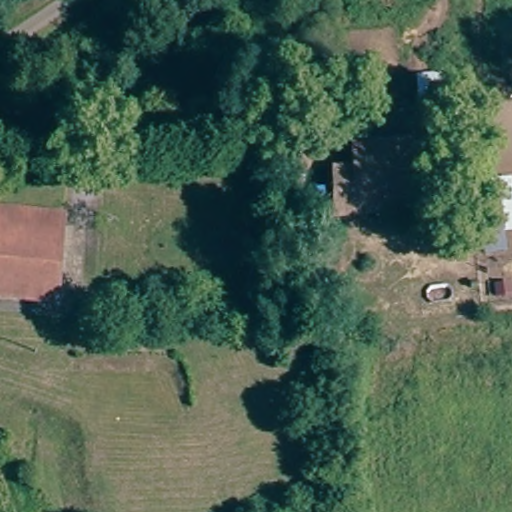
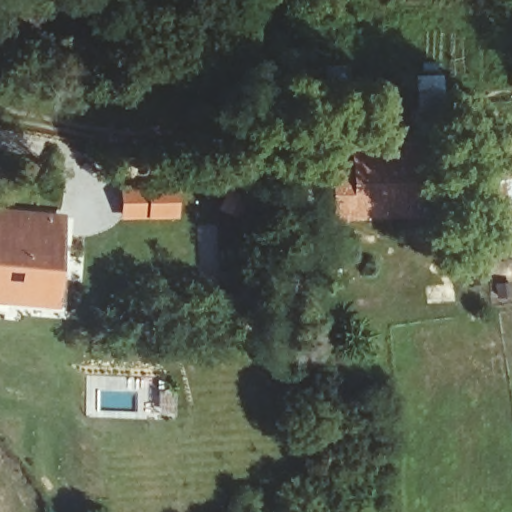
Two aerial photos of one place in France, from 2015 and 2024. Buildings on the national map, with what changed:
unchanged [(340,222),(338,180),(360,176),(359,151),(423,146),(428,215),(340,222)]
unchanged [(37,210),(39,183),(51,184),(51,210),(37,210)]
unchanged [(0,216),(59,220),(54,304),(0,301),(0,216)]

